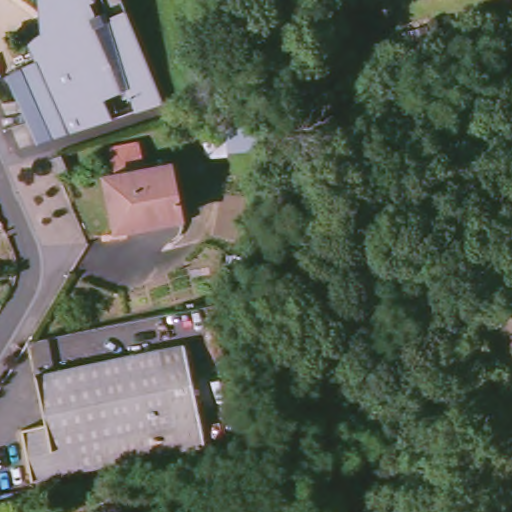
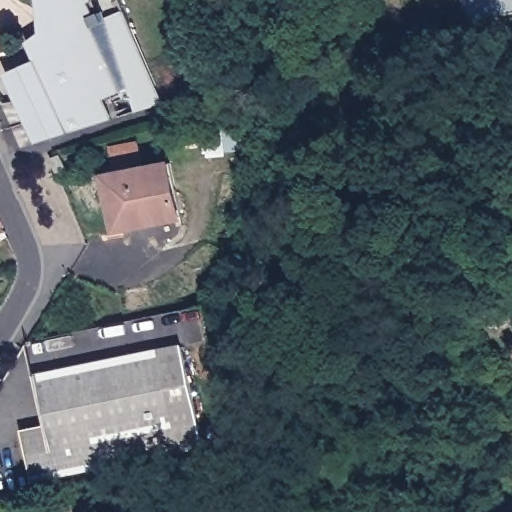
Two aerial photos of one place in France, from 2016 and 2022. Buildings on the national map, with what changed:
unchanged [(157,105),(138,111),(130,88),(105,99),(115,118),(92,126),(40,141),(10,72),(40,59),(32,41),(62,20),(53,0),(125,0),(166,102),(157,105)]
unchanged [(206,155),(204,129),(258,124),(260,150),(206,155)]
unchanged [(57,172),(50,158),(61,154),(67,169),(57,172)]
unchanged [(105,175),(170,161),(180,216),(115,228),(105,175)]
unchanged [(183,344),(205,448),(205,450),(107,465),(102,440),(175,425),(160,348),(183,344)]
unchanged [(22,429),(47,424),(37,374),(160,348),(175,425),(102,440),(107,465),(33,480),(22,429)]

